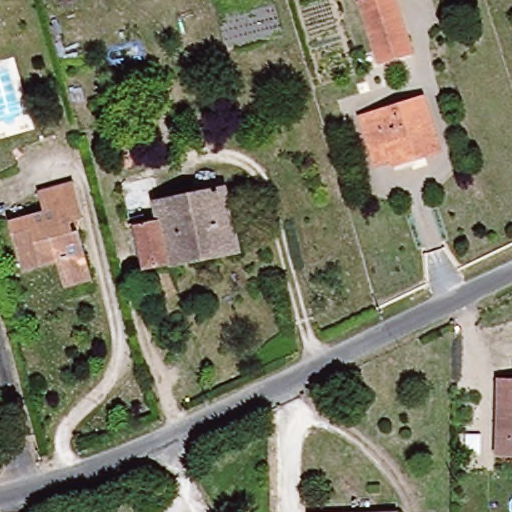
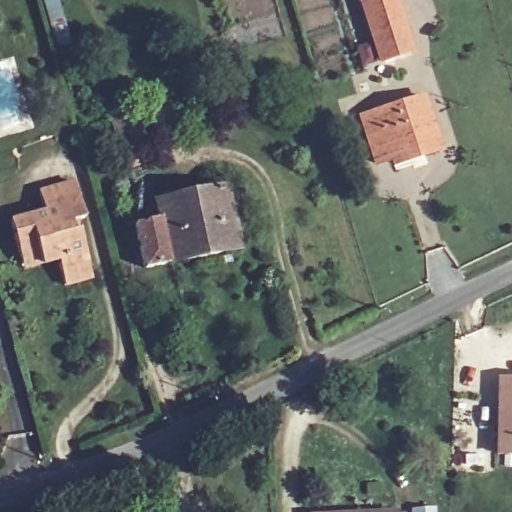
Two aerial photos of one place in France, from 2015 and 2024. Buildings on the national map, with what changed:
unchanged [(362,2),(371,0),(399,0),(413,50),(379,60),(362,2)]
unchanged [(428,98),(441,153),(392,165),(390,159),(374,163),(362,115),(428,98)]
unchanged [(247,248),(151,272),(139,228),(134,229),(124,189),(153,182),(160,204),(214,192),(213,180),(229,177),(247,248)]
unchanged [(86,263),(89,276),(62,283),(56,260),(25,268),(12,222),(44,213),(38,188),(72,179),(82,218),(76,220),(86,263)]
unchanged [(512,376),(512,451),(496,451),(496,376),(512,376)]
unchanged [(355,512),(397,511),(397,512),(355,512)]

